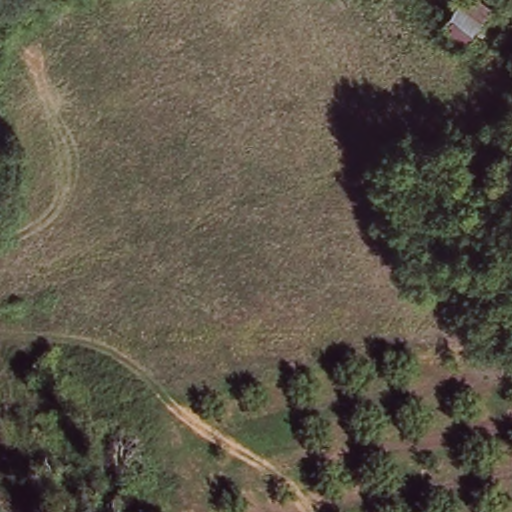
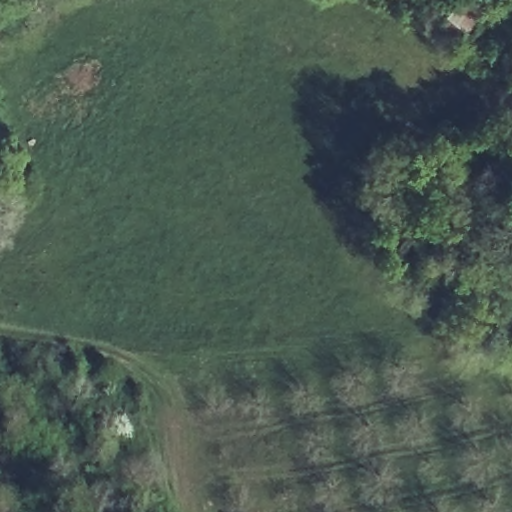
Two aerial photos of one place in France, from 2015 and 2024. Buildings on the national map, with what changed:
unchanged [(425,23),(440,1),(465,17),(451,40),(425,23)]

